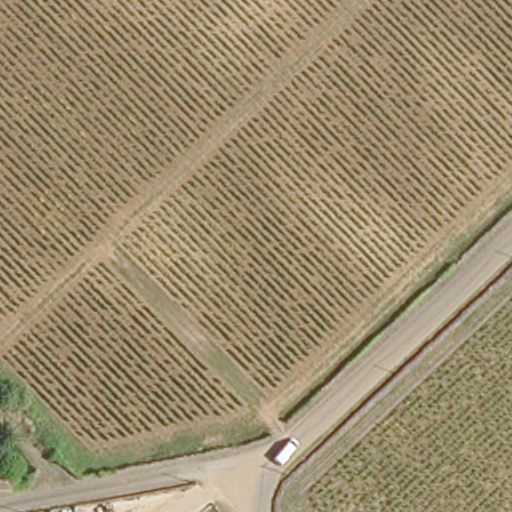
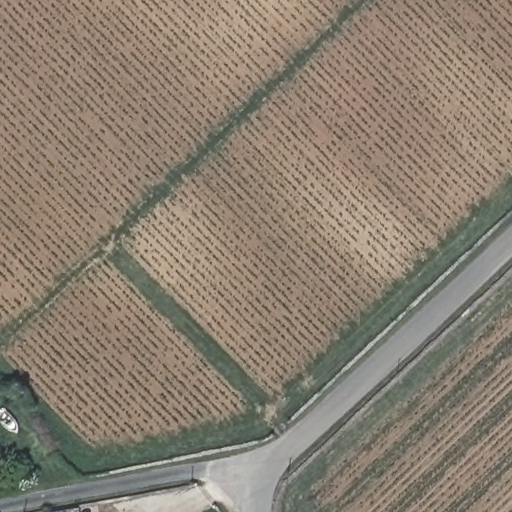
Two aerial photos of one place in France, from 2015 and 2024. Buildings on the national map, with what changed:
unchanged [(15,466),(25,484),(15,486),(0,486),(0,467),(4,472),(15,466)]

